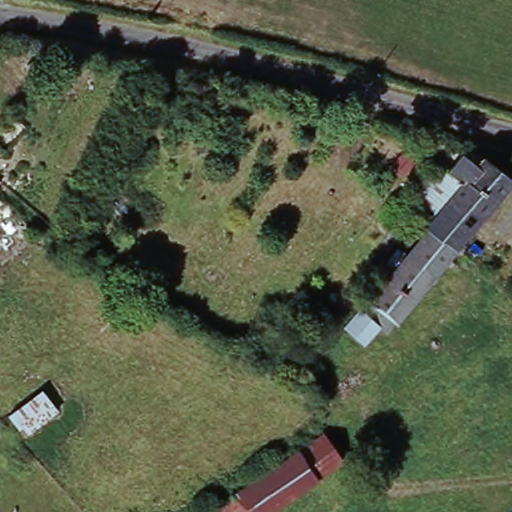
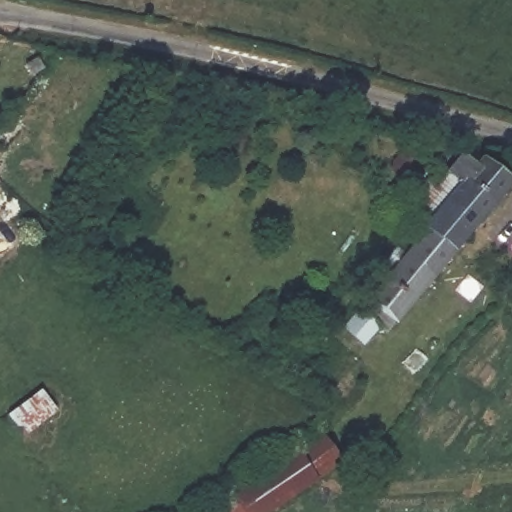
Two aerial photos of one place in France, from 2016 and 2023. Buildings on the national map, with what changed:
unchanged [(396,218),(433,173),(443,181),(460,165),(472,173),(480,166),(510,193),(455,259),(454,258),(420,239),(396,218)]
unchanged [(420,239),(454,258),(455,259),(437,280),(395,329),(376,352),(369,344),(363,351),(346,337),(362,319),(365,307),(409,251),(420,239)]
unchanged [(52,384),(70,407),(56,416),(26,436),(25,437),(9,415),(39,394),(52,384)]
unchanged [(333,431),(353,461),(328,477),(307,449),(333,431)]
unchanged [(328,477),(276,512),(226,512),(222,506),(245,490),(307,449),(328,477)]

